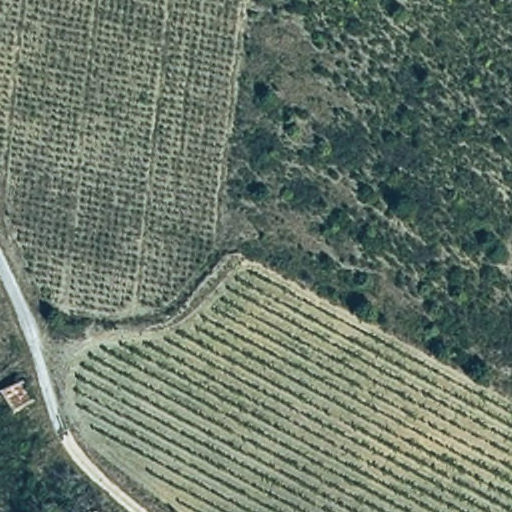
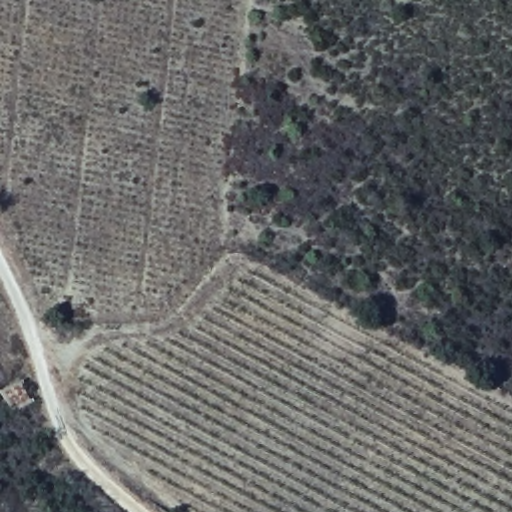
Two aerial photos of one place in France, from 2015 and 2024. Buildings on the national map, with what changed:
unchanged [(13,412),(0,394),(0,390),(21,377),(35,401),(13,412)]

